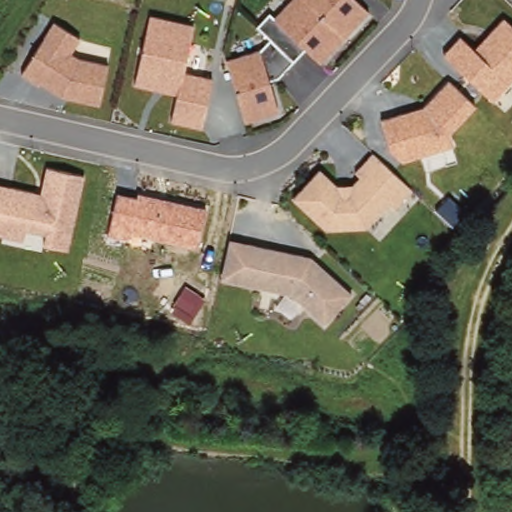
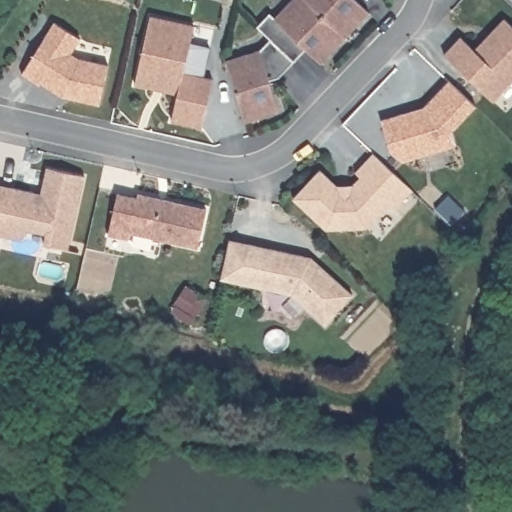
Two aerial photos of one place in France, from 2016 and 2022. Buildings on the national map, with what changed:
unchanged [(320,65),(305,55),(279,81),(268,87),(275,115),(244,125),(230,62),(259,54),(268,43),(256,29),(268,12),(277,18),(294,0),(351,0),(370,18),(320,65)]
unchanged [(195,28),(186,76),(212,81),(202,130),(167,125),(175,97),(134,89),(149,16),(195,28)]
unchanged [(512,34),(512,87),(492,110),(445,59),(459,40),(471,53),(501,23),(512,34)]
unchanged [(82,41),(74,58),(109,69),(101,112),(55,96),(21,75),(51,25),(82,41)]
unchanged [(473,108),(452,129),(457,148),(395,165),(380,123),(422,112),(447,84),(473,108)]
unchanged [(413,192),(395,213),(388,209),(370,229),(325,237),(291,203),(318,172),(333,188),(351,188),(361,179),(356,173),(375,158),(413,192)]
unchanged [(0,185),(35,194),(41,167),(79,175),(62,250),(39,244),(41,234),(20,229),(18,240),(0,236),(0,185)]
unchanged [(206,208),(197,250),(129,235),(128,242),(108,237),(115,194),(136,198),(137,193),(206,208)]
unchanged [(312,259),(353,297),(324,329),(290,298),(220,282),(230,242),(312,259)]

